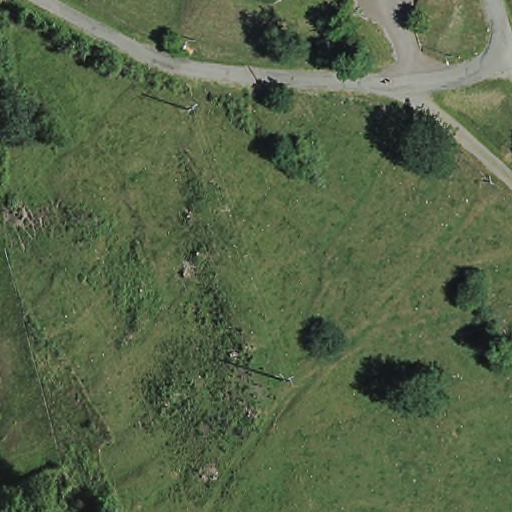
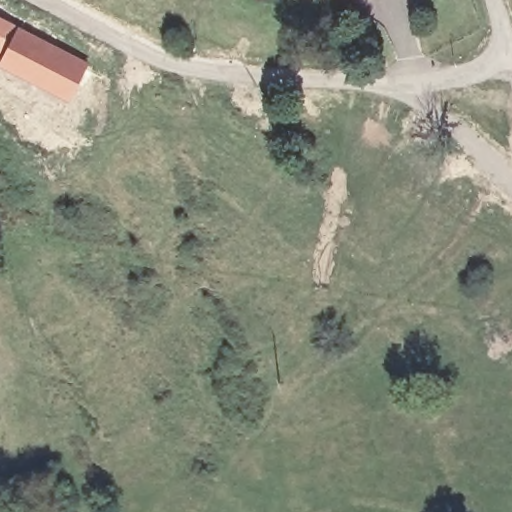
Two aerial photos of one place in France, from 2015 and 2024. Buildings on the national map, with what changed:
new [(68,101),(0,64),(0,56),(2,53),(0,51),(0,14),(90,61),(68,101)]

